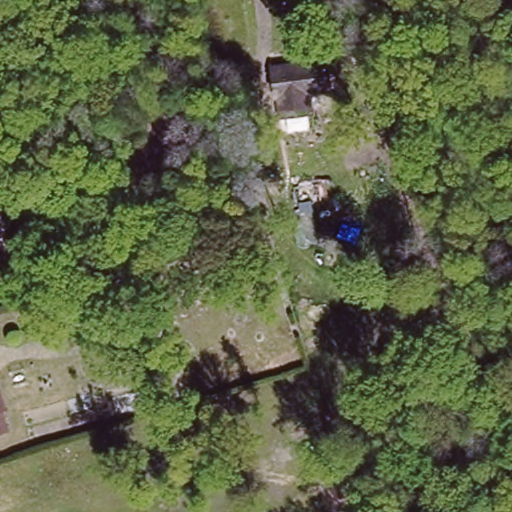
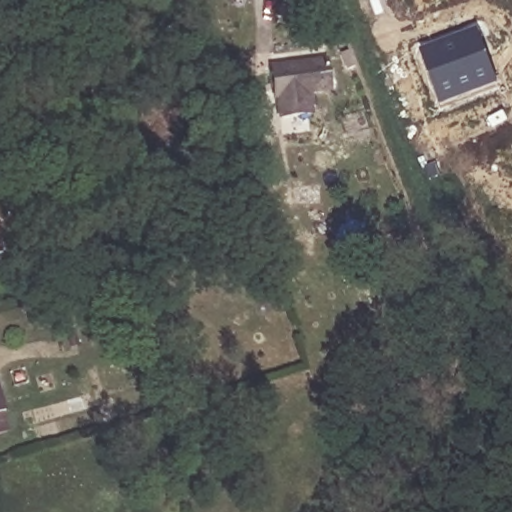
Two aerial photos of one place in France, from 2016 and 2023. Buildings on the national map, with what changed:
new [(425,46),(475,25),(497,80),(447,102),(425,46)]
unchanged [(317,56),(320,94),(274,97),(267,60),(317,56)]
new [(312,132),(340,120),(347,135),(320,148),(312,132)]
unchanged [(2,405),(0,405),(0,400),(2,405)]
unchanged [(4,425),(0,426),(0,412),(4,425)]

